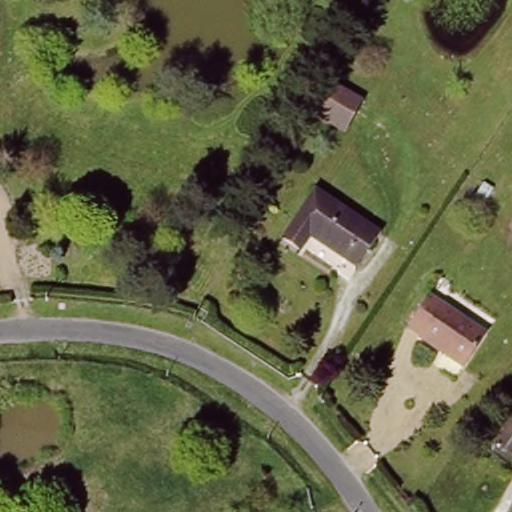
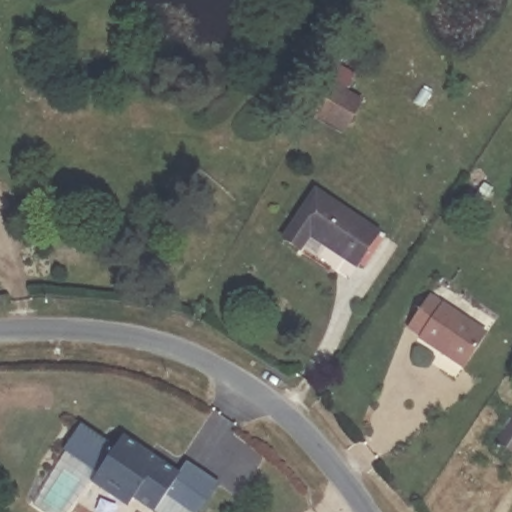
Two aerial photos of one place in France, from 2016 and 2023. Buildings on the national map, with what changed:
unchanged [(363,95),(343,134),(300,114),(323,71),(363,95)]
unchanged [(357,260),(305,234),(295,249),(281,242),(302,202),(308,192),(323,199),(375,228),(357,260)]
unchanged [(485,335),(461,367),(422,337),(423,335),(410,324),(433,296),(485,335)]
unchanged [(512,415),(512,455),(489,437),(508,413),(512,415)]
new [(202,512),(150,512),(134,501),(128,508),(91,483),(96,476),(63,453),(81,426),(115,448),(124,436),(178,473),(187,461),(220,486),(202,512)]

